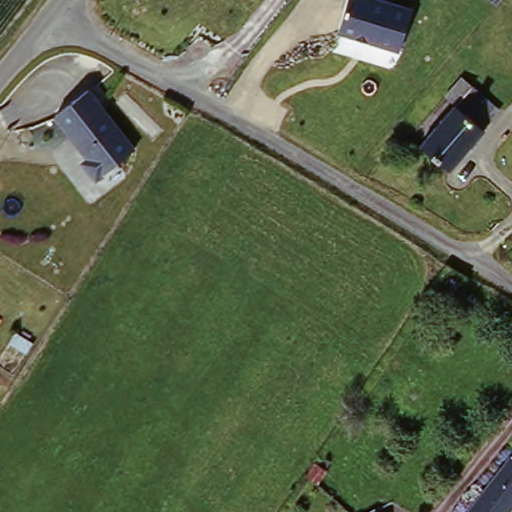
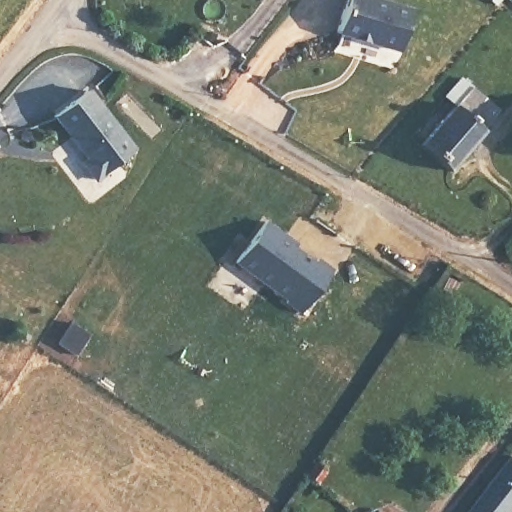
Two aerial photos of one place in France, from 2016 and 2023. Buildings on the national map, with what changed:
unchanged [(348,0),(383,0),(412,9),(397,52),(337,32),(348,0)]
new [(496,0),(501,0),(499,2),(496,0)]
unchanged [(460,108),(449,97),(464,82),(502,110),(484,132),(486,135),(452,174),(424,150),(460,108)]
unchanged [(139,148),(96,180),(80,162),(88,156),(54,115),(91,86),(139,148)]
new [(285,237),(318,260),(332,271),(303,311),(237,263),(266,222),(285,237)]
new [(72,322),(89,332),(75,353),(58,343),(72,322)]
unchanged [(512,455),(512,507),(508,512),(468,512),(511,454),(512,455)]
unchanged [(330,471),(321,483),(311,477),(319,465),(330,471)]

